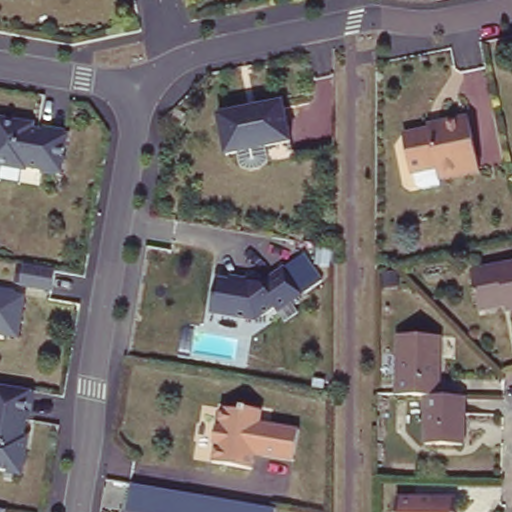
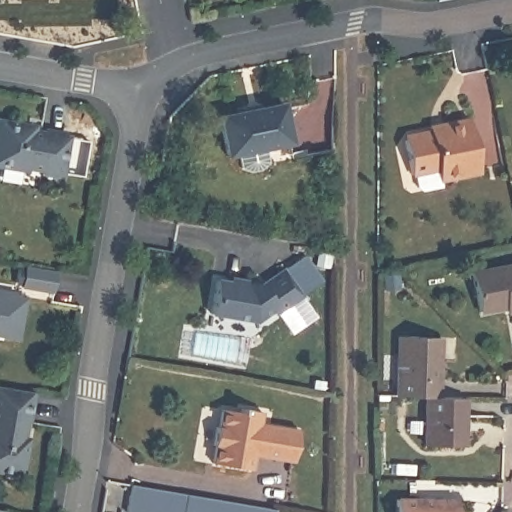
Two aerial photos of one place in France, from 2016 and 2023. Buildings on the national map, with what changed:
unchanged [(255,164),(246,166),(236,162),(232,148),(221,150),(214,110),(277,99),(284,138),(260,143),(263,158),(255,164)]
unchanged [(426,126),(440,124),(466,118),(477,172),(437,180),(435,170),(409,176),(401,141),(406,135),(423,131),(428,134),(426,126)]
unchanged [(35,130),(46,131),(47,129),(69,133),(69,135),(71,136),(64,171),(62,170),(62,173),(45,171),(45,168),(28,165),(27,168),(0,162),(0,135),(0,120),(35,126),(35,130)]
unchanged [(325,278),(292,303),(300,313),(286,322),(276,309),(267,314),(259,313),(258,317),(217,311),(222,277),(247,281),(247,278),(267,281),(304,254),(325,278)]
unchanged [(59,269),(56,289),(26,283),(29,264),(59,269)]
unchanged [(512,275),(512,311),(481,316),(473,283),(512,275)]
unchanged [(17,293),(26,294),(19,333),(0,330),(0,286),(17,289),(17,293)]
unchanged [(394,344),(432,343),(434,398),(422,398),(392,398),(394,344)]
unchanged [(27,449),(32,450),(27,475),(0,470),(0,387),(2,387),(37,393),(27,449)]
unchanged [(458,449),(422,449),(422,398),(434,398),(457,398),(458,449)]
unchanged [(240,411),(241,404),(261,408),(258,420),(297,427),(292,459),(260,453),(261,449),(253,448),(250,467),(211,461),(215,443),(212,443),(216,424),(218,424),(221,407),(240,411)]
unchanged [(136,480),(281,503),(279,512),(260,512),(190,501),(187,512),(163,512),(131,507),(136,480)]
unchanged [(457,493),(457,512),(396,512),(396,492),(457,493)]
unchanged [(260,512),(187,512),(190,501),(260,512)]

